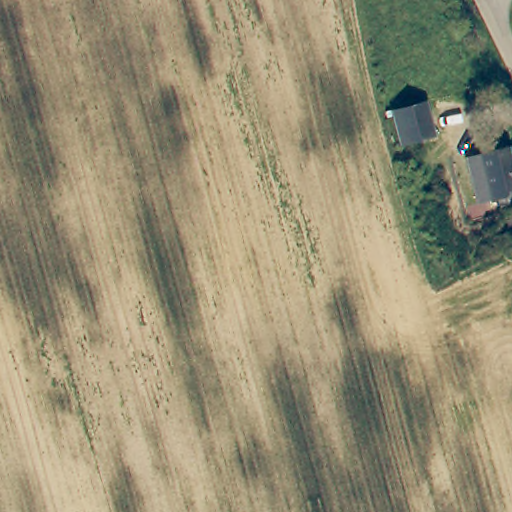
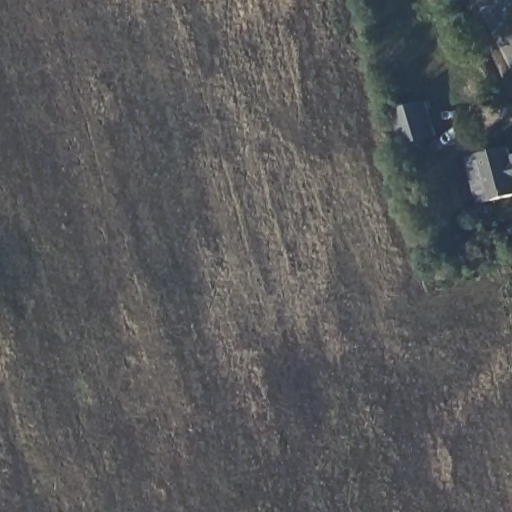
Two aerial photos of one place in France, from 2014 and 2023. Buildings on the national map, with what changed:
unchanged [(396,141),(388,106),(424,99),(431,133),(396,141)]
unchanged [(471,151),(480,149),(509,143),(511,152),(512,151),(512,193),(490,197),(477,200),(467,152),(471,151)]

